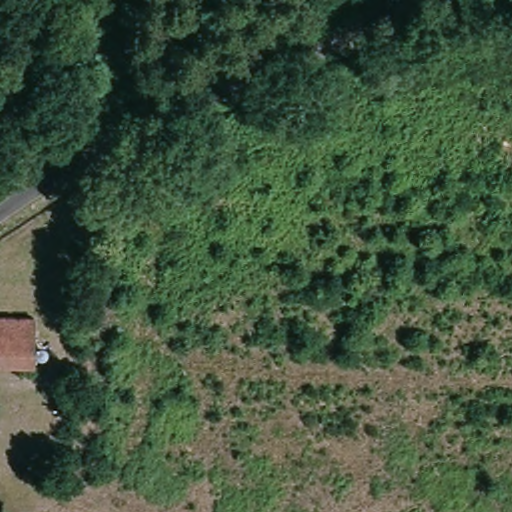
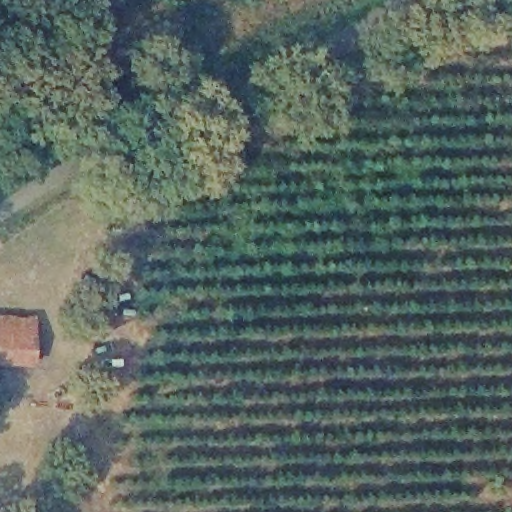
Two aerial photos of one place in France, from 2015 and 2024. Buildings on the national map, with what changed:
unchanged [(38,366),(22,364),(2,363),(0,363),(0,316),(36,318),(41,319),(38,366)]

